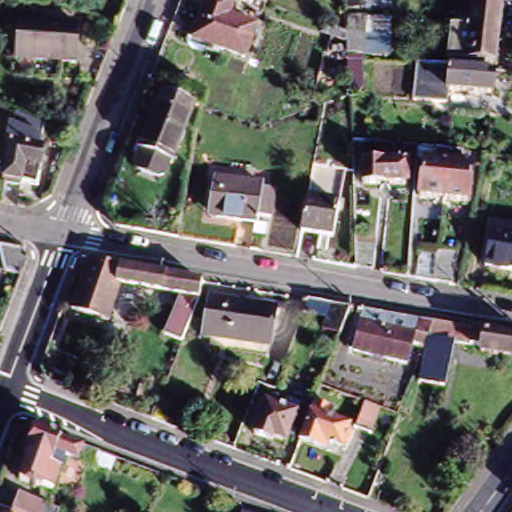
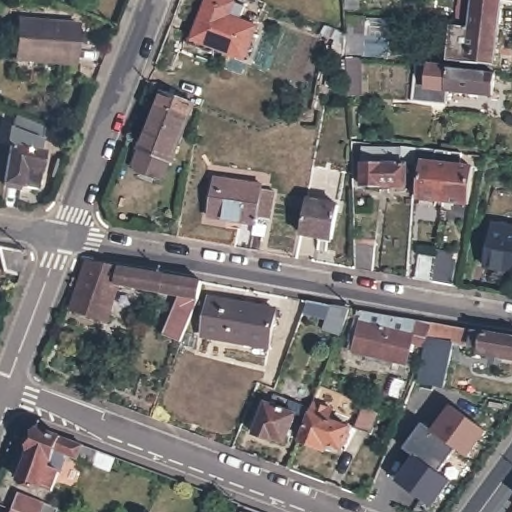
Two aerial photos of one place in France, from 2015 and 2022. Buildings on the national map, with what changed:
unchanged [(228,17),(255,27),(244,59),(190,40),(205,0),(226,0),(233,2),(228,17)]
unchanged [(466,57),(449,56),(452,25),(469,27),(470,22),(463,21),(464,15),(459,15),(461,0),(505,0),(502,31),(497,62),(467,58),(466,57)]
unchanged [(348,19),(395,21),(392,58),(350,57),(348,19)]
unchanged [(75,62),(16,57),(18,21),(77,26),(75,62)]
unchanged [(452,63),(451,67),(496,72),(494,92),(449,87),(447,101),(428,99),(432,62),(452,63)]
unchanged [(171,164),(140,152),(160,92),(193,105),(171,164)]
unchanged [(35,190),(3,184),(10,147),(42,154),(35,190)]
unchanged [(416,162),(415,176),(415,178),(407,179),(406,200),(362,197),(363,171),(350,170),(350,155),(416,162)]
unchanged [(447,166),(441,215),(418,212),(422,177),(415,176),(416,162),(447,166)]
unchanged [(460,167),(459,181),(470,182),(465,219),(441,215),(447,166),(460,167)]
unchanged [(258,237),(245,235),(247,223),(203,216),(210,175),(270,185),(265,217),(251,215),(250,223),(260,226),(258,237)]
unchanged [(340,205),(332,239),(300,232),(307,197),(340,205)]
unchanged [(512,273),(485,269),(490,227),(512,230),(512,273)]
unchanged [(22,251),(27,260),(21,277),(0,271),(0,250),(1,247),(22,251)]
unchanged [(354,248),(373,251),(372,276),(355,272),(354,248)]
unchanged [(183,334),(164,327),(178,290),(165,287),(118,280),(112,278),(110,285),(120,286),(111,317),(75,305),(91,258),(123,263),(168,271),(205,277),(198,293),(195,301),(183,334)]
unchanged [(450,290),(432,287),(419,284),(420,258),(435,260),(453,262),(450,290)]
unchanged [(277,311),(271,346),(205,335),(210,300),(277,311)]
unchanged [(340,332),(325,328),(327,317),(303,313),(308,302),(330,305),(350,308),(340,332)]
unchanged [(404,342),(400,363),(355,353),(357,341),(352,340),(357,311),(361,312),(427,323),(418,345),(404,342)]
unchanged [(512,339),(512,359),(475,353),(476,348),(465,346),(448,342),(438,385),(412,378),(427,323),(466,331),(478,332),(512,339)]
unchanged [(271,442),(270,445),(252,439),(263,407),(268,408),(271,399),(287,405),(297,408),(293,418),(283,447),(271,442)]
unchanged [(327,415),(324,423),(344,432),(345,432),(343,437),(345,440),(342,448),(337,452),(336,455),(322,450),(319,456),(295,447),(293,446),(309,407),(327,415)]
new [(485,432),(467,457),(456,450),(438,473),(450,482),(431,507),(396,482),(414,457),(403,449),(421,423),(432,431),(450,407),(485,432)]
unchanged [(365,440),(350,434),(360,408),(375,414),(365,440)]
unchanged [(13,485),(32,434),(53,442),(76,451),(92,456),(87,470),(71,463),(60,459),(53,476),(45,497),(35,493),(13,485)]
unchanged [(17,498),(40,508),(50,512),(12,512),(17,498)]

